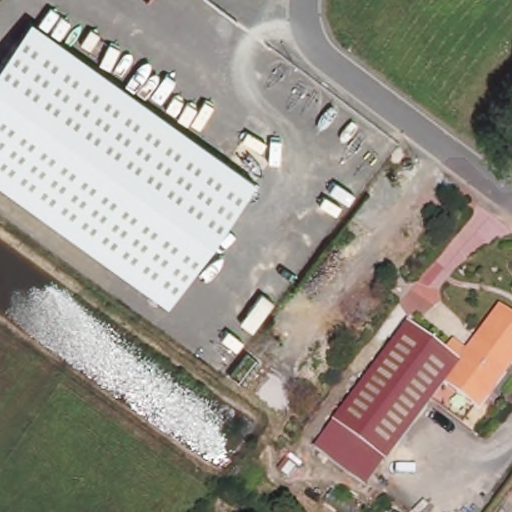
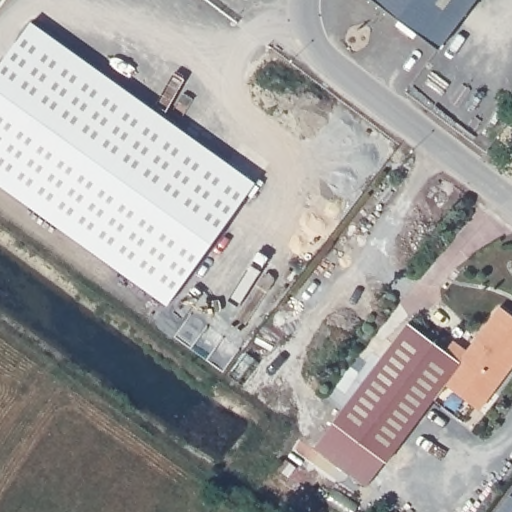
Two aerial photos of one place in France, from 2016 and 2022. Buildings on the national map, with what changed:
new [(373,0),(475,0),(438,49),(373,0)]
unchanged [(0,186),(0,65),(31,21),(255,183),(168,305),(0,186)]
unchanged [(407,323),(445,351),(452,341),(466,351),(499,307),(512,316),(512,364),(478,410),(443,383),(384,462),(332,423),(407,323)]
unchanged [(332,423),(384,462),(366,488),(314,449),(332,423)]

